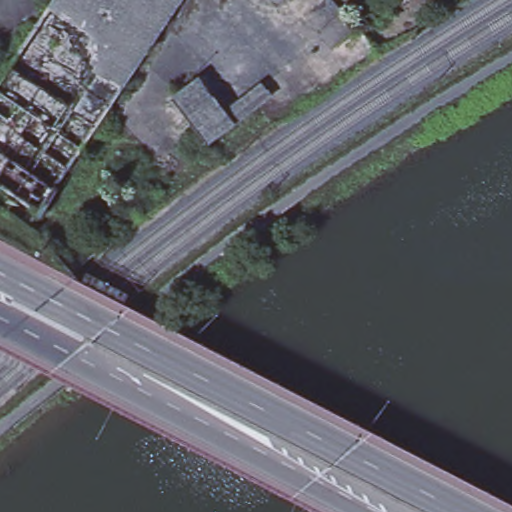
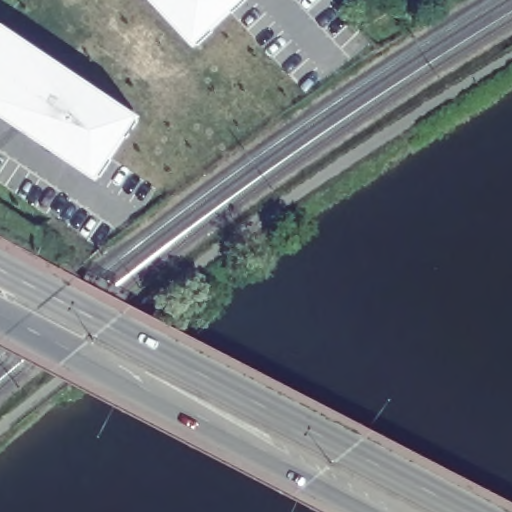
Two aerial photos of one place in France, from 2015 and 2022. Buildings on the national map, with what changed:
new [(197,50),(150,0),(251,0),(197,50)]
new [(103,185),(98,180),(0,115),(0,19),(7,14),(150,110),(103,185)]
demolished [(177,95),(202,77),(227,110),(235,119),(209,139),(177,95)]

